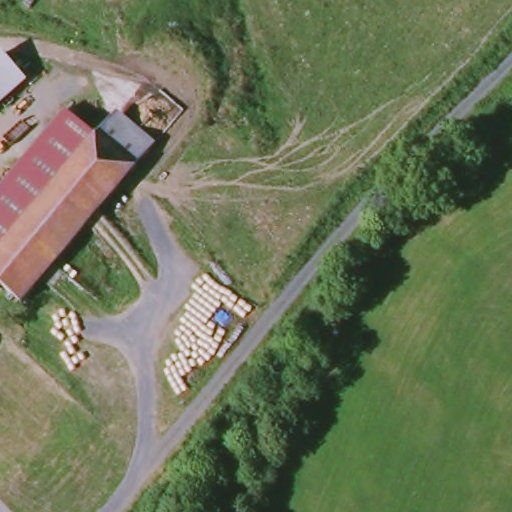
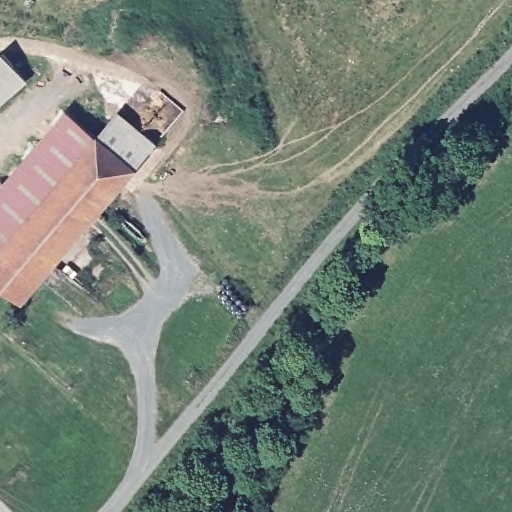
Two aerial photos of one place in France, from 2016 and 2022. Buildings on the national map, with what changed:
unchanged [(3,50),(30,79),(0,105),(0,52),(3,50)]
unchanged [(100,140),(6,250),(0,245),(0,190),(66,111),(100,140)]
unchanged [(124,112),(161,144),(140,168),(103,136),(124,112)]
unchanged [(5,283),(0,288),(0,257),(103,136),(140,168),(27,301),(5,283)]

